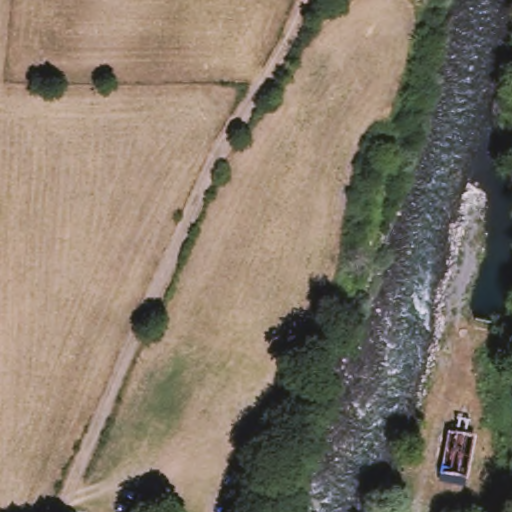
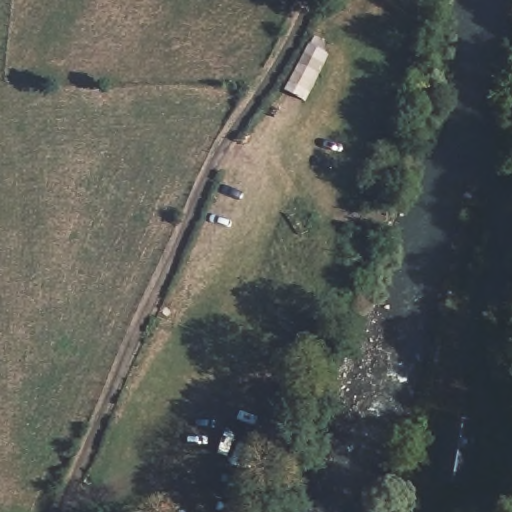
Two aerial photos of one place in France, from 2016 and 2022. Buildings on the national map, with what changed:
unchanged [(442,418),(470,422),(462,475),(435,471),(442,418)]

